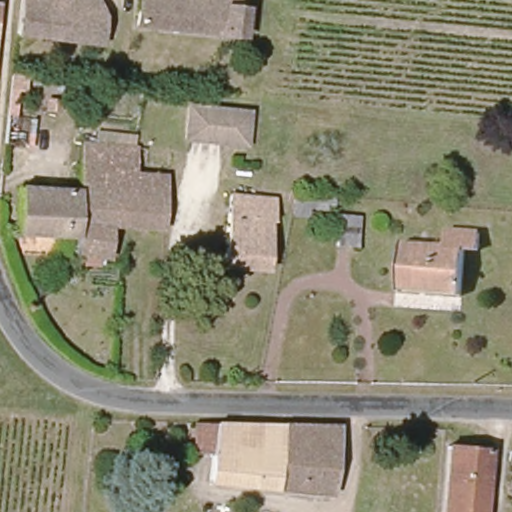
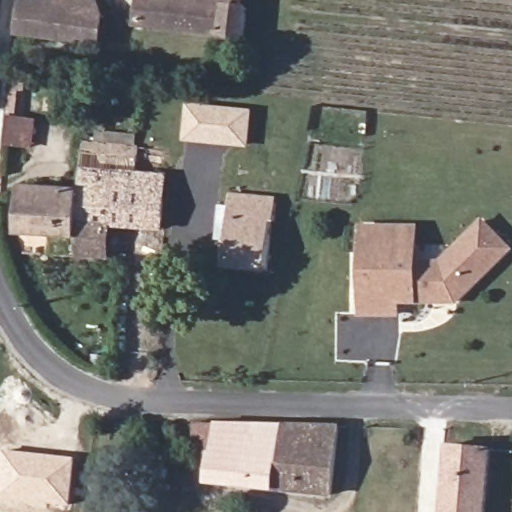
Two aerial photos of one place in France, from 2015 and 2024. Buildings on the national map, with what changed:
unchanged [(68,0),(66,38),(19,30),(22,0),(68,0)]
unchanged [(102,43),(66,38),(68,0),(94,0),(104,17),(102,43)]
unchanged [(242,8),(238,39),(120,24),(122,0),(234,0),(233,6),(242,8)]
unchanged [(183,141),(188,105),(253,112),(248,148),(183,141)]
unchanged [(85,138),(140,141),(139,148),(143,148),(143,172),(162,173),(161,202),(165,202),(163,229),(109,223),(78,221),(82,194),(85,138)]
unchanged [(19,233),(21,189),(82,194),(78,221),(76,239),(19,233)]
unchanged [(279,199),(277,227),(270,227),(267,268),(226,264),(233,194),(279,199)]
demolished [(362,216),(360,248),(336,246),(338,215),(362,216)]
new [(512,246),(512,253),(458,306),(402,305),(402,317),(359,317),(360,224),(420,224),(419,260),(440,260),(483,217),(512,246)]
unchanged [(76,256),(76,239),(78,221),(109,223),(106,258),(76,256)]
demolished [(445,240),(447,226),(481,228),(479,243),(465,242),(462,289),(401,286),(404,238),(445,240)]
unchanged [(337,429),(332,491),(210,481),(212,453),(192,452),(196,421),(337,429)]
unchanged [(447,442),(489,443),(483,512),(441,512),(447,442)]
new [(76,457),(70,506),(0,498),(0,469),(2,450),(76,457)]

